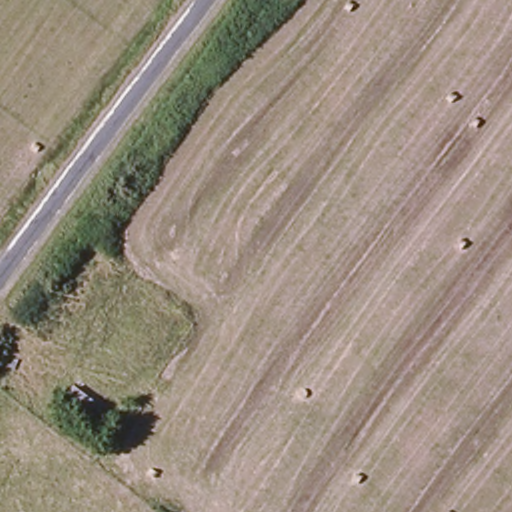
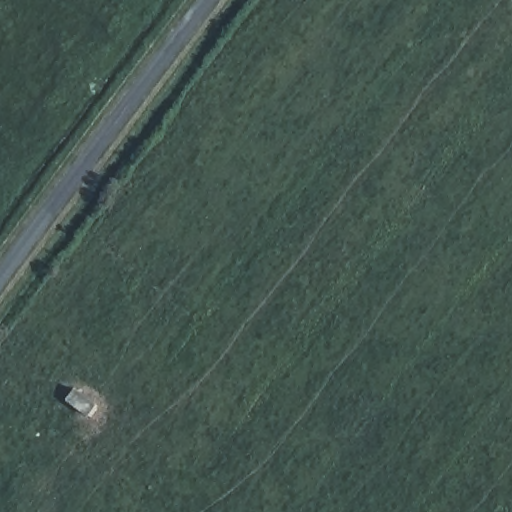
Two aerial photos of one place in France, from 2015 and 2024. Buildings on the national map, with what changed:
unchanged [(93,409),(85,422),(66,408),(73,395),(93,409)]

